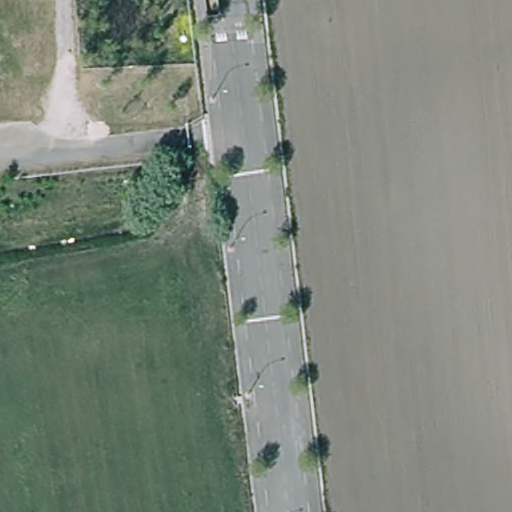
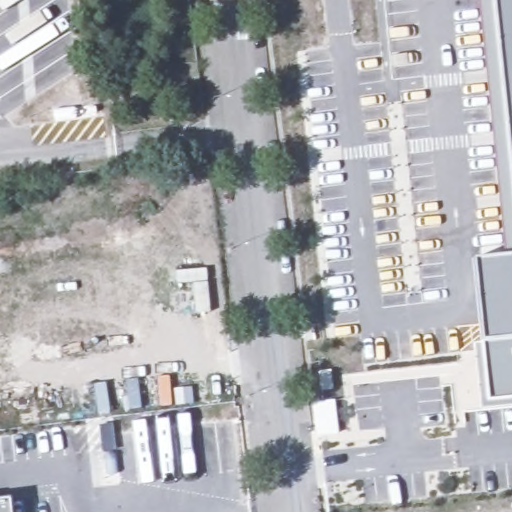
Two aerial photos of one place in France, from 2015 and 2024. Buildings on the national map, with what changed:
new [(493,0),(512,0),(512,189),(493,0)]
new [(487,400),(483,341),(474,260),(512,255),(512,397),(487,400)]
new [(0,498),(10,497),(11,512),(0,512),(0,498)]

